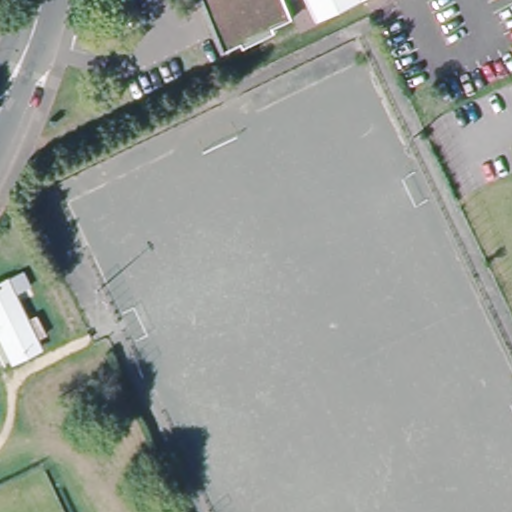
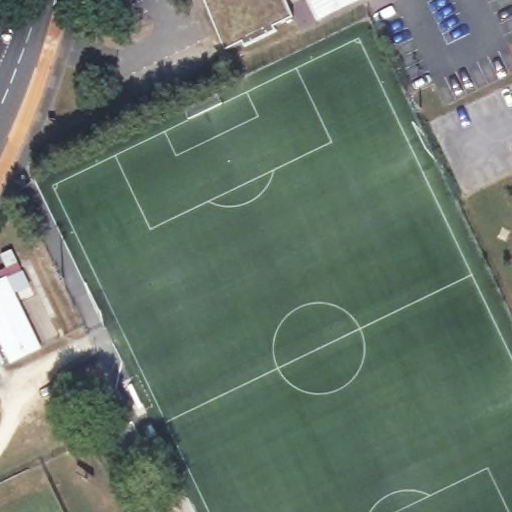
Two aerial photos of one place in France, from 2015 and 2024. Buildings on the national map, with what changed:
unchanged [(275,24),(277,27),(245,42),(244,38),(225,46),(205,0),(288,0),(295,15),(275,24)]
unchanged [(305,0),(354,0),(314,19),(305,0)]
unchanged [(41,351),(10,365),(0,344),(0,279),(7,277),(41,351)]

